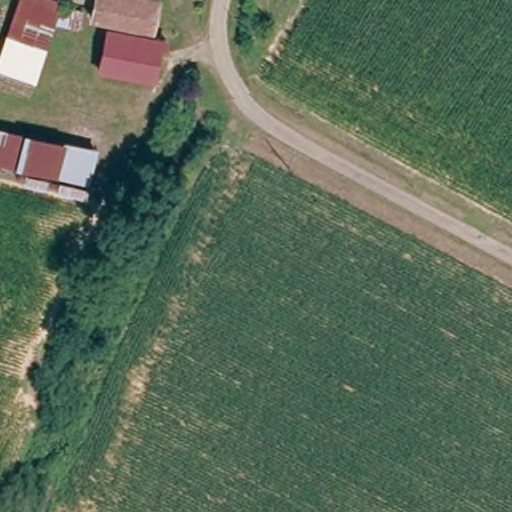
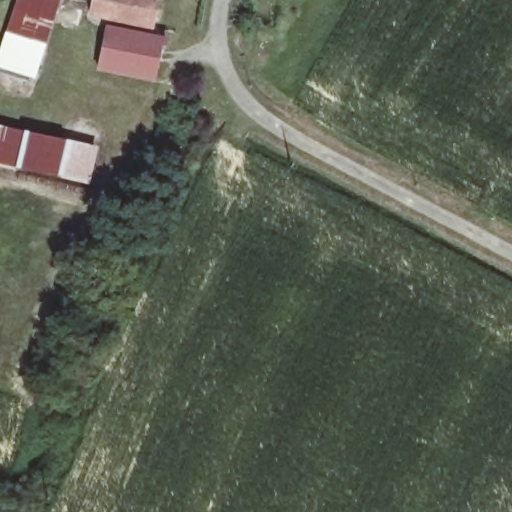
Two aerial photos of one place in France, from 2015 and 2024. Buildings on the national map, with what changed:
unchanged [(6,31),(14,0),(57,0),(45,45),(6,31)]
unchanged [(82,0),(157,0),(152,20),(152,23),(90,10),(91,4),(91,2),(82,0)]
unchanged [(151,79),(94,66),(102,24),(160,36),(151,79)]
unchanged [(45,45),(36,83),(0,70),(0,51),(6,31),(45,45)]
unchanged [(0,167),(0,127),(29,134),(21,172),(0,167)]
unchanged [(88,176),(86,186),(21,172),(24,159),(29,134),(94,148),(88,176)]

